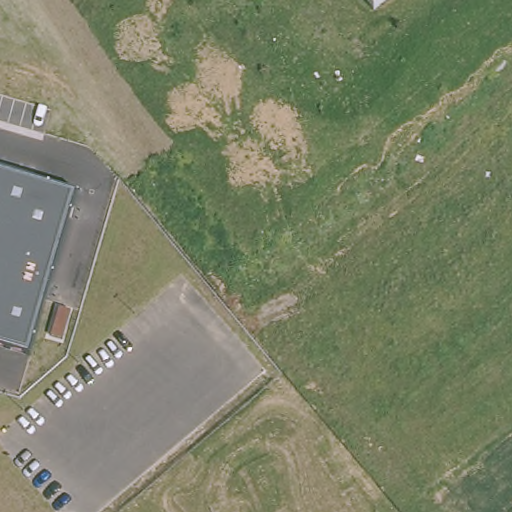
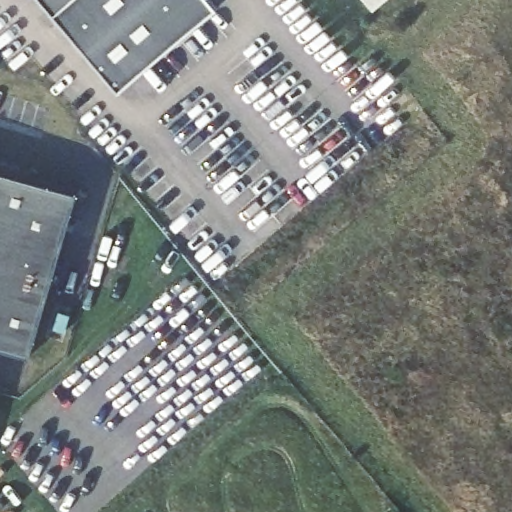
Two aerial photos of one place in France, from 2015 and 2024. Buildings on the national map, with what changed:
new [(118,93),(40,0),(209,0),(216,9),(118,93)]
unchanged [(363,0),(386,0),(373,11),(363,0)]
unchanged [(77,194),(29,359),(0,350),(0,171),(77,194)]

